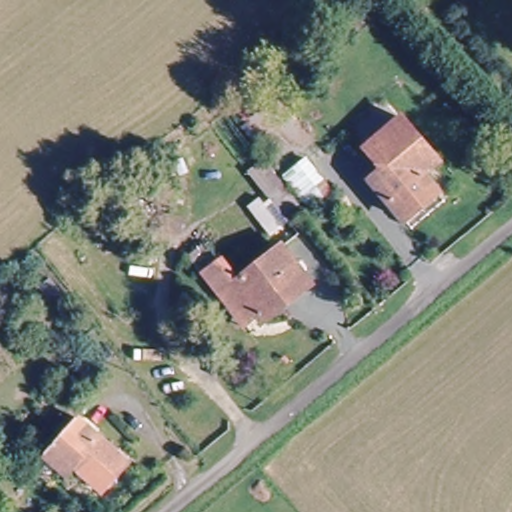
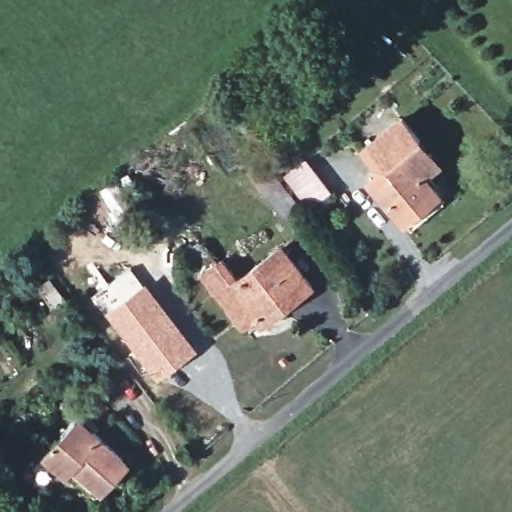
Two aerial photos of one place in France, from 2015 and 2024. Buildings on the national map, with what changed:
unchanged [(419,135),(438,157),(421,170),(436,188),(402,215),(369,174),(382,164),(365,142),(402,113),(419,135)]
unchanged [(243,280),(287,245),(319,282),(274,319),(267,311),(243,280)]
unchanged [(251,324),(211,272),(227,260),(243,280),(267,311),(251,324)]
new [(198,349),(159,380),(106,311),(146,281),(198,349)]
unchanged [(61,475),(41,458),(75,420),(123,462),(99,490),(89,501),(61,475)]

